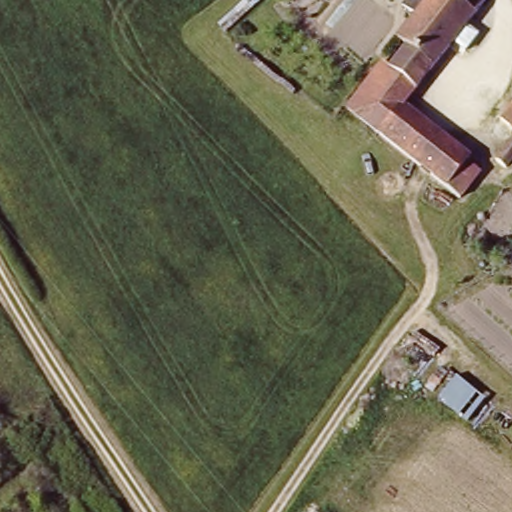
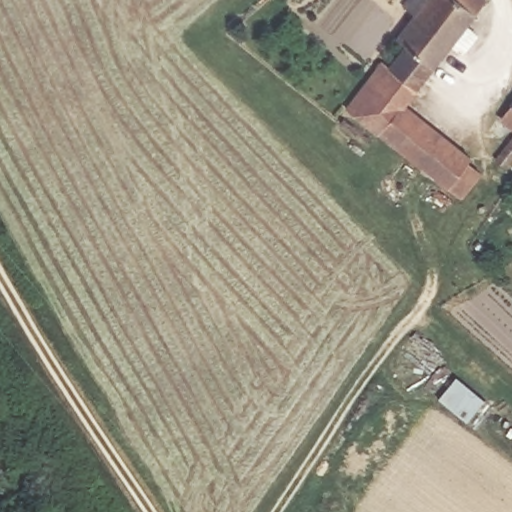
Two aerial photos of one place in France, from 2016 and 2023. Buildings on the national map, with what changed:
unchanged [(345,114),(380,62),(389,67),(403,49),(393,41),(412,17),(398,7),(403,0),(423,0),(424,1),(424,0),(481,0),(404,106),(379,141),(345,114)]
unchanged [(512,102),(512,124),(502,115),(512,102)]
unchanged [(467,164),(480,174),(462,204),(379,141),(404,106),(465,148),(475,154),(467,164)]
unchanged [(512,164),(495,185),(487,179),(512,150),(512,164)]

